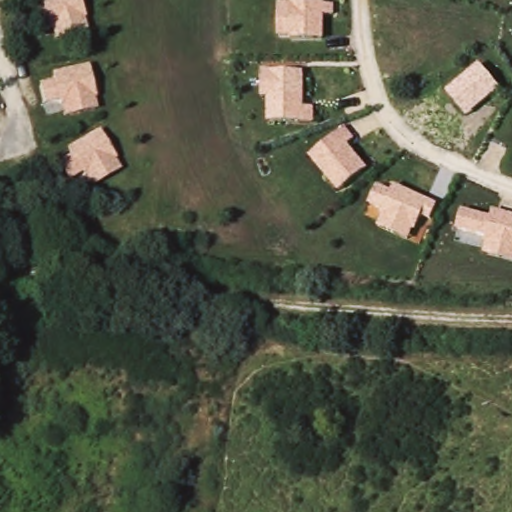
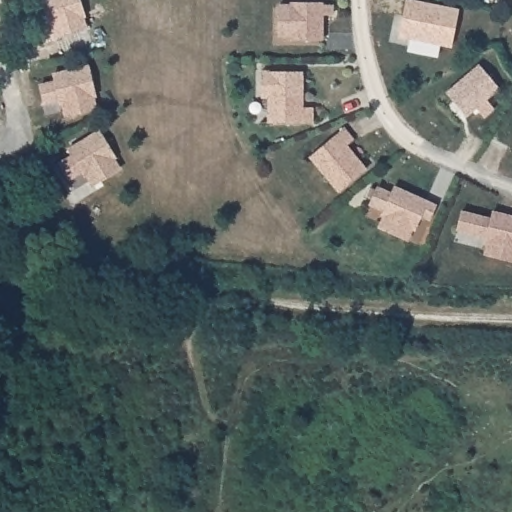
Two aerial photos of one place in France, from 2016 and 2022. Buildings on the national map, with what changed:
unchanged [(82,0),(87,16),(84,17),(87,29),(55,38),(43,0),(82,0)]
new [(398,35),(406,0),(418,0),(459,9),(451,48),(398,35)]
unchanged [(279,3),(335,3),(334,15),(325,15),(323,39),(292,39),(292,35),(280,35),(279,3)]
unchanged [(40,84),(55,80),(52,71),(90,64),(99,108),(64,116),(61,102),(46,104),(40,84)]
unchanged [(501,89),(466,117),(445,90),(478,64),(501,89)]
unchanged [(261,69),(303,69),(303,105),(314,106),(315,122),(268,122),(268,98),(262,98),(261,69)]
unchanged [(310,159),(345,128),(357,139),(348,147),(367,168),(338,193),(310,159)]
unchanged [(58,161),(72,154),(69,148),(101,129),(122,168),(92,185),(84,173),(70,180),(58,161)]
unchanged [(377,227),(383,211),(371,206),(378,185),(392,190),(395,186),(436,202),(430,218),(422,215),(410,240),(377,227)]
unchanged [(482,253),(486,237),(457,229),(462,209),(492,215),(493,210),(512,214),(512,260),(482,253)]

